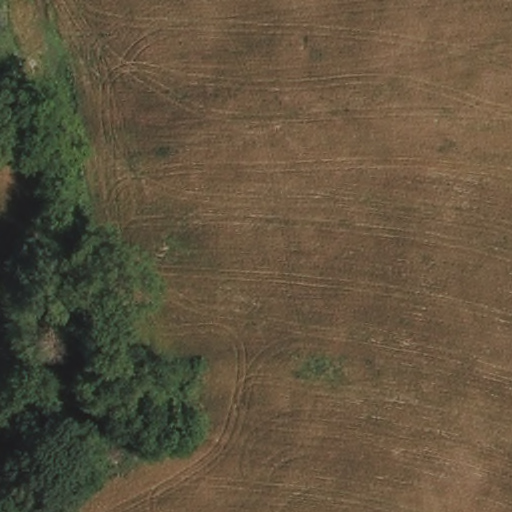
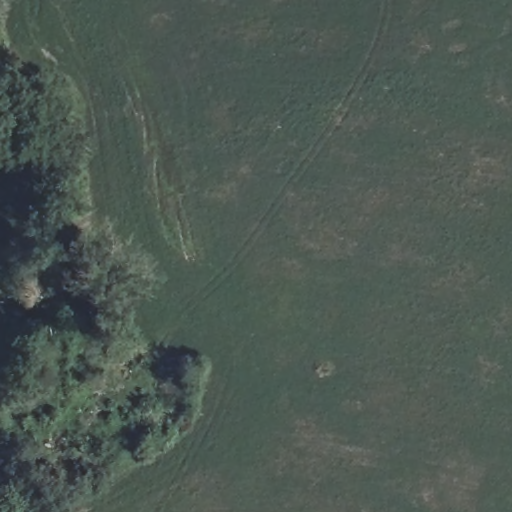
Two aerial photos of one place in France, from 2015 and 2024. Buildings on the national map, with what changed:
[]

